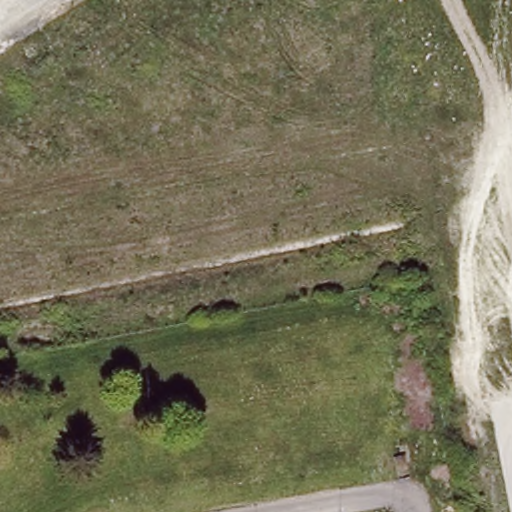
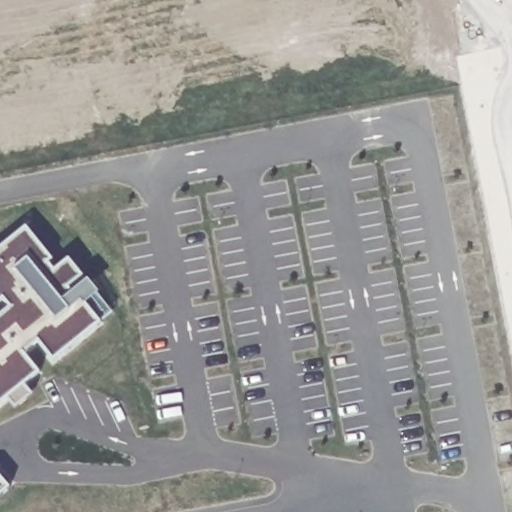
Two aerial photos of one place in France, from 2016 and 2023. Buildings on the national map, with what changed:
new [(101,321),(53,359),(38,339),(21,351),(39,372),(0,403),(0,316),(8,309),(0,299),(0,247),(26,226),(53,259),(48,263),(53,270),(68,257),(81,274),(66,287),(71,293),(89,280),(99,294),(109,310),(98,318),(101,321)]
new [(0,494),(0,479),(8,487),(0,494)]

